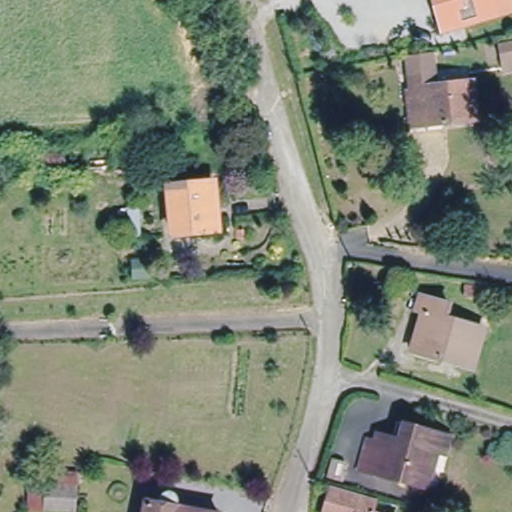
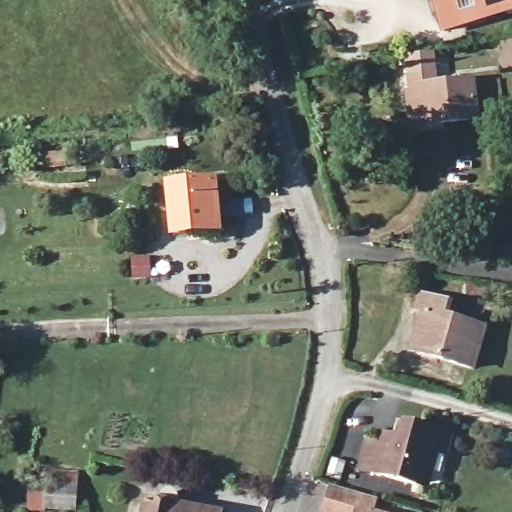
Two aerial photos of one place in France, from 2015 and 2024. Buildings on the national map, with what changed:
unchanged [(430,0),(512,0),(512,12),(503,15),(440,34),(430,0)]
unchanged [(411,83),(417,83),(414,52),(441,48),(442,78),(478,76),(480,117),(429,120),(413,121),(411,83)]
unchanged [(512,49),(512,64),(505,65),(502,50),(512,49)]
unchanged [(214,236),(197,234),(195,228),(177,228),(172,182),(210,179),(214,236)]
unchanged [(428,306),(422,304),(426,290),(452,299),(448,311),(487,324),(476,364),(417,346),(428,306)]
unchanged [(413,482),(359,465),(367,435),(373,436),(376,428),(392,433),(397,417),(447,432),(443,449),(435,447),(428,470),(423,486),(413,482)]
unchanged [(345,465),(341,483),(324,479),(327,462),(345,465)]
unchanged [(32,473),(75,476),(71,508),(27,502),(32,473)]
unchanged [(147,506),(161,504),(164,484),(179,485),(180,498),(220,506),(219,512),(146,512),(147,506)]
unchanged [(378,512),(329,512),(336,489),(381,503),(378,512)]

